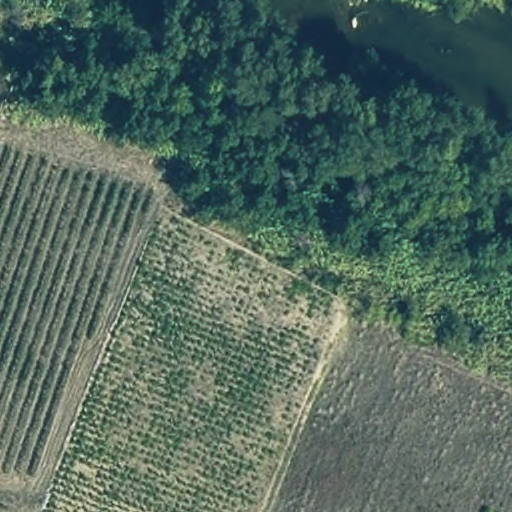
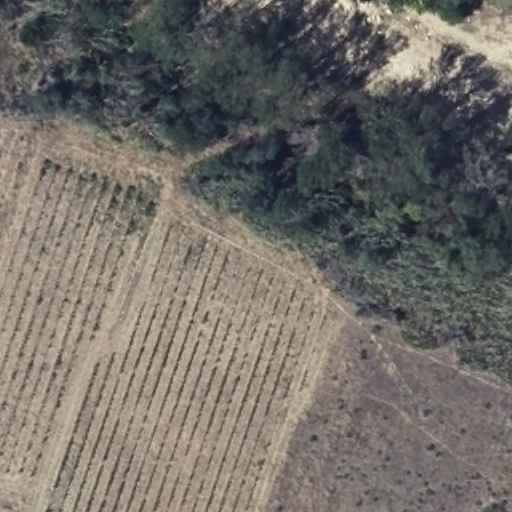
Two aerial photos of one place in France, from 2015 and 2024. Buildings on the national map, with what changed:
[]

